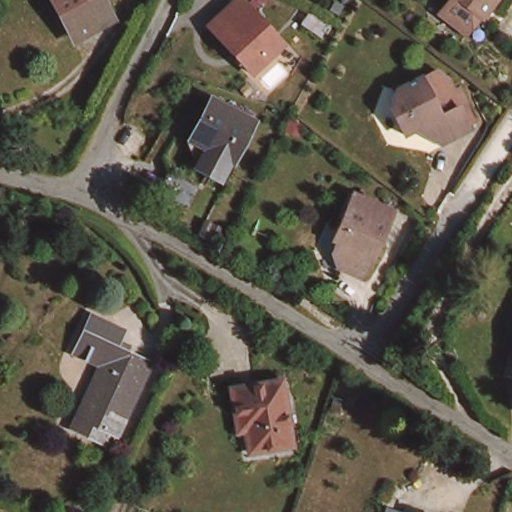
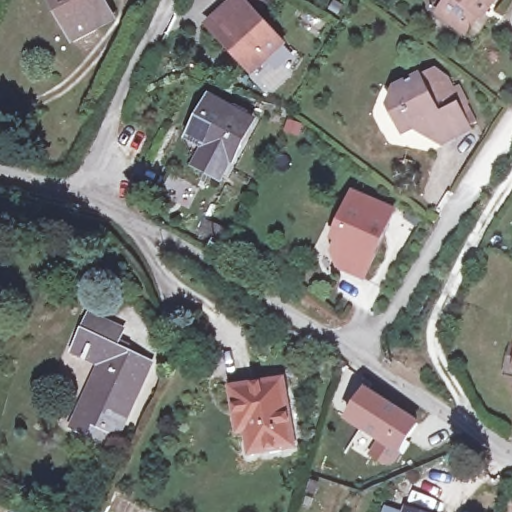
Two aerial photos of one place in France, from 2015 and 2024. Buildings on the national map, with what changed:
unchanged [(112,20),(73,44),(48,0),(100,0),(112,20)]
unchanged [(476,24),(473,22),(460,40),(432,20),(444,5),(436,0),(492,0),(476,24)]
unchanged [(239,2),(258,25),(259,24),(282,51),(250,79),(207,30),(225,14),(239,2)]
unchanged [(377,108),(385,93),(422,73),(434,78),(442,91),(451,86),(460,103),(471,122),(463,127),(465,130),(437,148),(422,126),(397,140),(377,108)]
unchanged [(196,156),(206,139),(192,132),(212,93),(229,102),(251,113),(247,121),(246,120),(221,169),(196,156)]
unchanged [(167,179),(197,193),(187,213),(158,198),(167,179)]
unchanged [(389,209),(363,274),(339,265),(335,253),(342,228),(337,225),(349,192),(389,209)]
unchanged [(146,354),(116,424),(75,407),(96,356),(69,344),(78,323),(146,354)]
unchanged [(234,412),(231,389),(281,383),(291,446),(251,453),(246,429),(237,432),(234,412)]
new [(366,389),(417,421),(393,460),(386,462),(372,453),(382,439),(348,418),(366,389)]
unchanged [(411,512),(401,512),(402,508),(411,512)]

